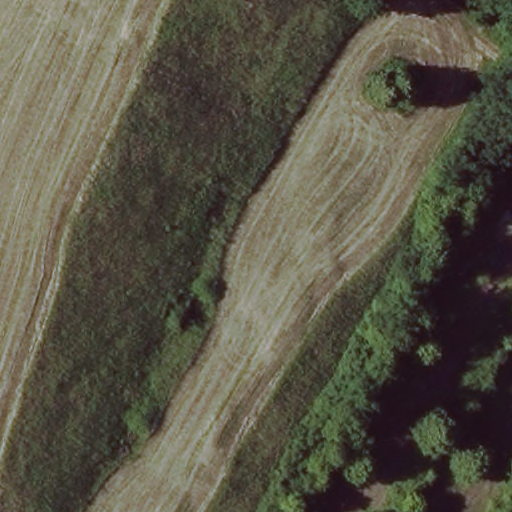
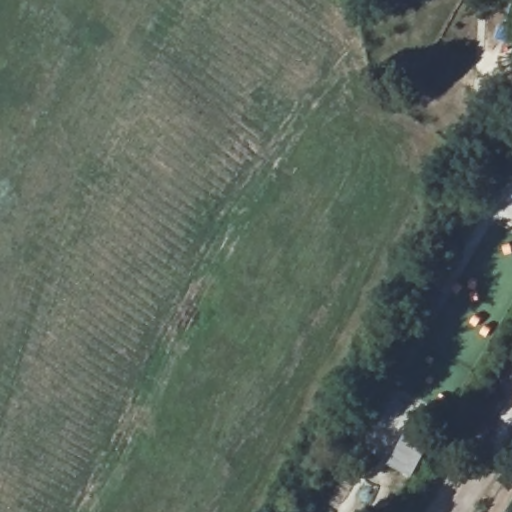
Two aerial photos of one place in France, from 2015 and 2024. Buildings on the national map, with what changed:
[]

